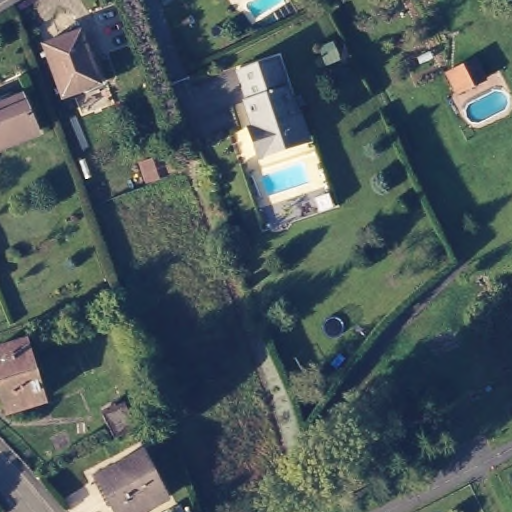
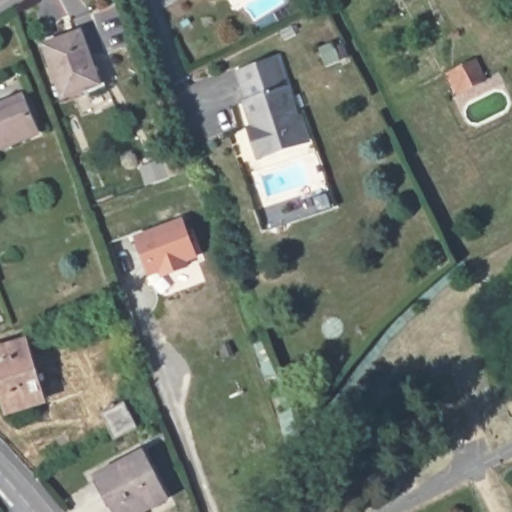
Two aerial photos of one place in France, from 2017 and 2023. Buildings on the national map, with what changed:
unchanged [(79,34),(99,87),(62,100),(42,48),(79,34)]
unchanged [(325,65),(321,53),(333,48),(338,61),(325,65)]
unchanged [(459,96),(449,74),(477,59),(488,82),(459,96)]
unchanged [(254,126),(247,102),(249,101),(241,73),(279,62),(296,119),(301,117),(308,139),(298,141),(281,146),(282,149),(258,156),(251,134),(249,128),(254,126)]
unchanged [(37,136),(0,151),(0,109),(5,107),(22,100),(37,136)]
new [(183,221),(196,256),(183,260),(186,267),(164,276),(161,269),(148,274),(135,239),(183,221)]
unchanged [(24,335),(46,391),(10,405),(0,379),(0,344),(24,335)]
unchanged [(123,407),(135,430),(116,440),(104,417),(123,407)]
unchanged [(97,479),(139,454),(166,498),(142,512),(117,512),(97,479)]

